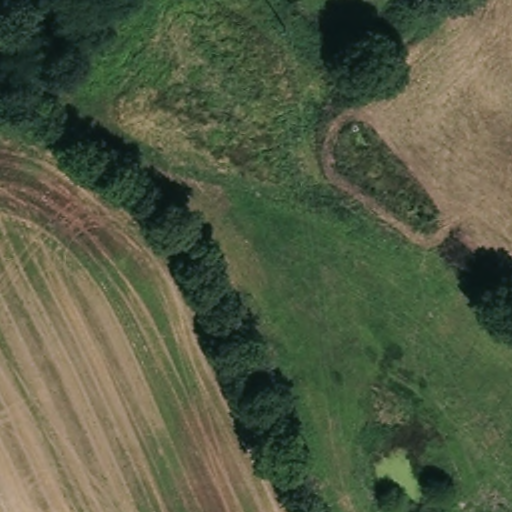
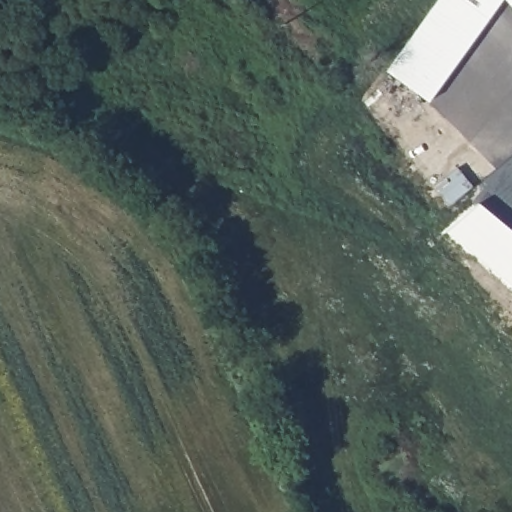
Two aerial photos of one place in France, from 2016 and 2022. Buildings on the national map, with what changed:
new [(385,74),(438,0),(504,0),(430,104),(385,74)]
new [(504,0),(512,0),(512,9),(504,0)]

